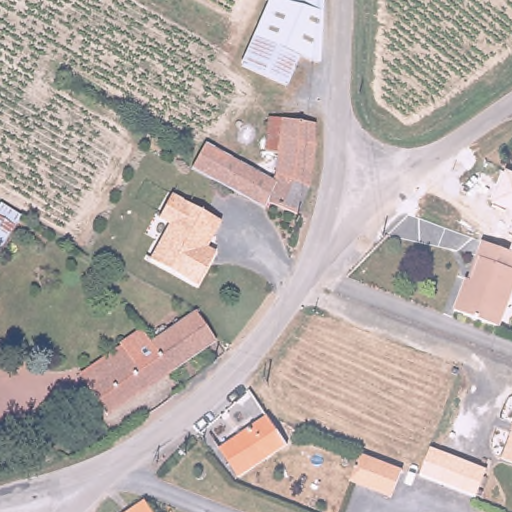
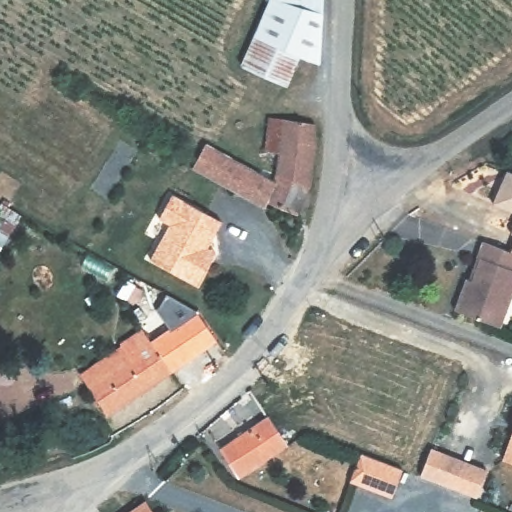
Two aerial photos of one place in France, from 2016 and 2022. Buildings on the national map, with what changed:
unchanged [(322,7),(287,3),(286,22),(259,20),(269,0),(323,0),(322,7)]
unchanged [(286,22),(287,3),(322,7),(316,69),(296,59),(252,37),(259,20),(286,22)]
unchanged [(236,65),(252,37),(296,59),(282,89),(236,65)]
unchanged [(274,151),(262,151),(268,114),(310,117),(302,185),(271,173),(274,151)]
unchanged [(235,159),(271,173),(302,185),(299,221),(261,203),(191,170),(203,145),(235,159)]
unchanged [(492,203),(504,170),(512,174),(512,211),(492,203)]
unchanged [(209,261),(196,285),(149,258),(169,223),(158,217),(166,202),(171,193),(220,221),(216,228),(205,247),(210,250),(214,252),(209,261)]
unchanged [(0,201),(21,213),(0,250),(0,201)]
unchanged [(508,232),(512,221),(512,234),(508,232)]
unchanged [(512,253),(512,290),(497,326),(448,307),(460,277),(463,279),(472,254),(477,239),(512,253)]
unchanged [(511,252),(512,249),(512,253),(511,252)]
unchanged [(83,363),(120,339),(118,335),(136,323),(148,315),(161,336),(194,314),(197,311),(219,338),(175,368),(113,410),(94,378),(83,363)]
unchanged [(244,475),(223,450),(214,439),(256,408),(263,417),(283,445),(244,475)]
unchanged [(502,458),(502,457),(512,431),(512,462),(502,458)]
unchanged [(187,459),(177,451),(188,441),(196,449),(187,459)]
unchanged [(431,446),(487,466),(476,496),(419,475),(431,446)]
unchanged [(400,481),(390,509),(347,492),(358,464),(400,481)]
unchanged [(141,498),(150,512),(122,512),(127,508),(141,498)]

